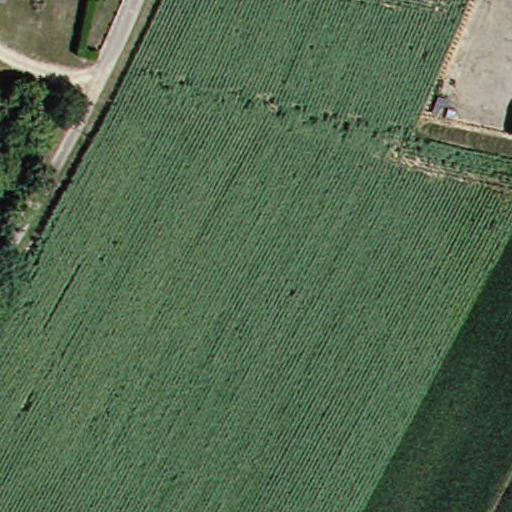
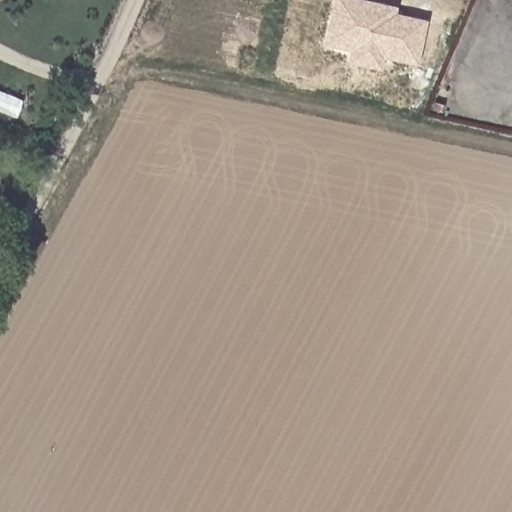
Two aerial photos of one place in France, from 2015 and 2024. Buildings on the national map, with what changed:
new [(428,21),(418,67),(385,59),(382,71),(347,64),(350,53),(323,47),(332,0),(362,0),(397,7),(396,14),(428,21)]
unchanged [(512,107),(512,132),(505,130),(512,107)]

